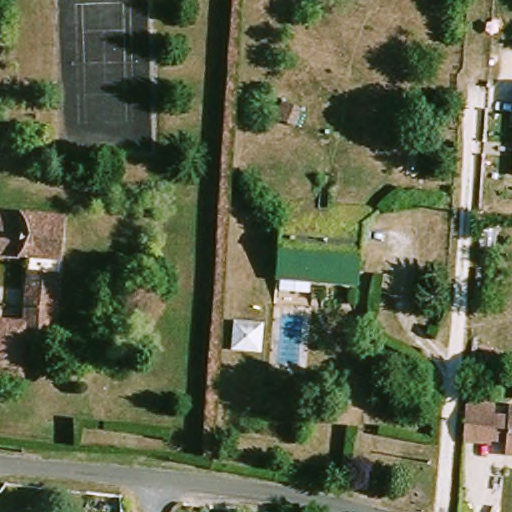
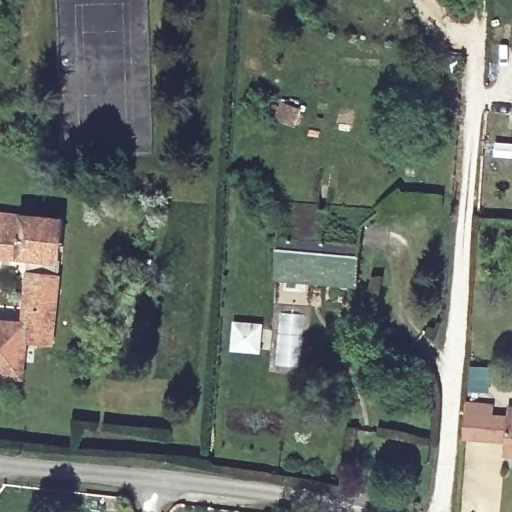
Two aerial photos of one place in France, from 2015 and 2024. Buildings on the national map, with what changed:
unchanged [(355,290),(276,283),(281,224),(265,205),(381,214),(360,231),(355,290)]
unchanged [(51,348),(25,345),(21,382),(0,380),(0,327),(22,329),(29,265),(0,262),(0,219),(64,225),(51,348)]
unchanged [(492,406),(492,416),(512,418),(512,457),(504,456),(505,442),(462,440),(462,436),(465,404),(492,406)]

